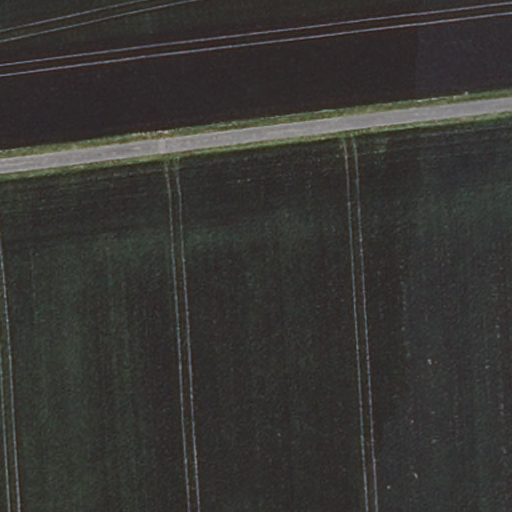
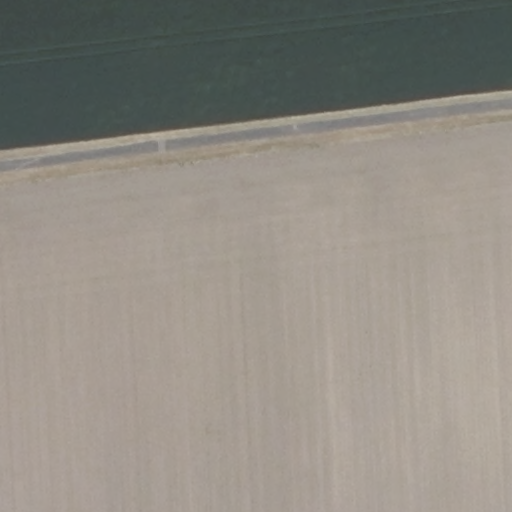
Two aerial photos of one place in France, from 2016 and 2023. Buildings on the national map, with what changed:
[]

